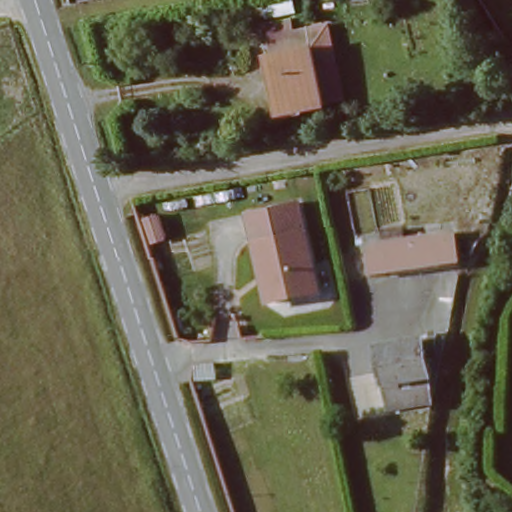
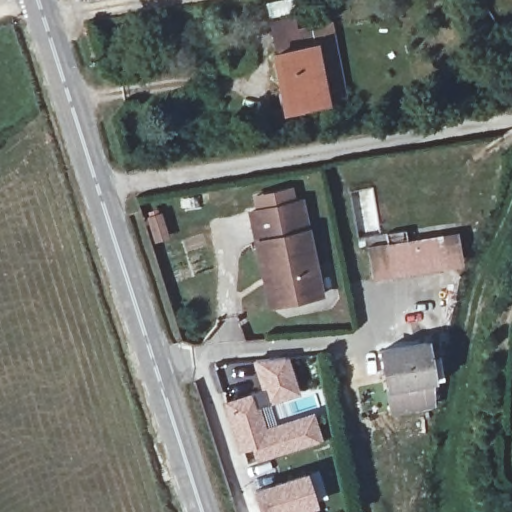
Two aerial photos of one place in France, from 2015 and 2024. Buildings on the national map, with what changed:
unchanged [(326,104),(286,114),(272,54),(314,45),(326,104)]
unchanged [(256,243),(251,212),(301,203),(319,298),(275,306),(268,307),(256,243)]
unchanged [(432,238),(438,270),(387,279),(382,246),(432,238)]
unchanged [(378,341),(422,333),(427,365),(385,374),(378,341)]
new [(291,354),(304,396),(268,409),(272,424),(318,411),(326,437),(344,512),(270,512),(263,486),(306,474),(301,449),(247,468),(226,399),(266,386),(259,360),(260,358),(291,354)]
unchanged [(427,365),(432,394),(389,401),(385,374),(427,365)]

